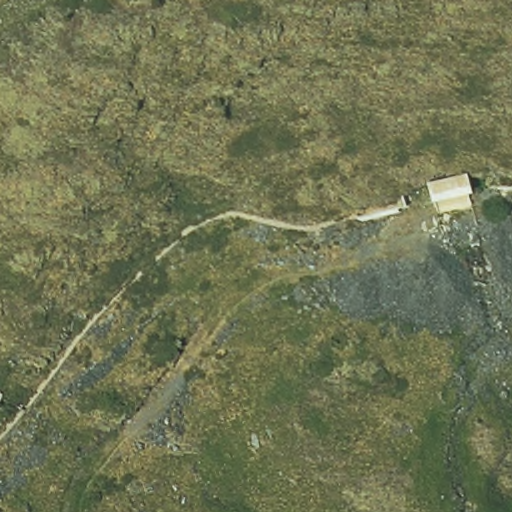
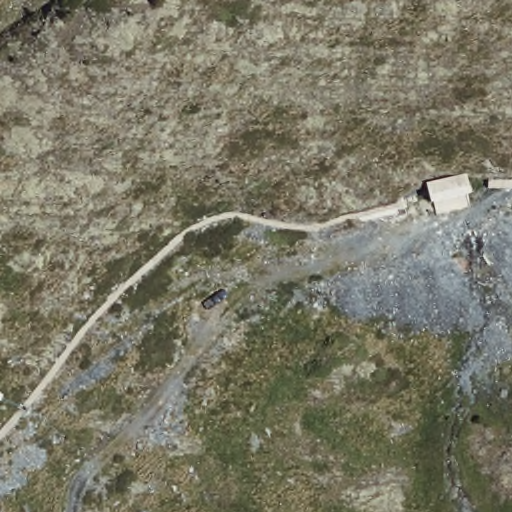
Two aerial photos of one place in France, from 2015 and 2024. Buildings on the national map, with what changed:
unchanged [(429,186),(469,176),(471,194),(435,209),(429,186)]

